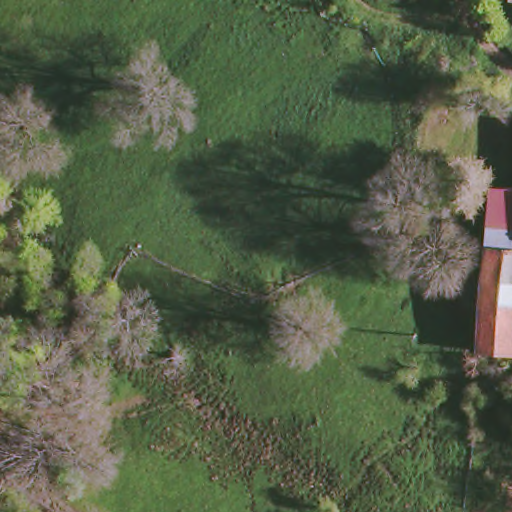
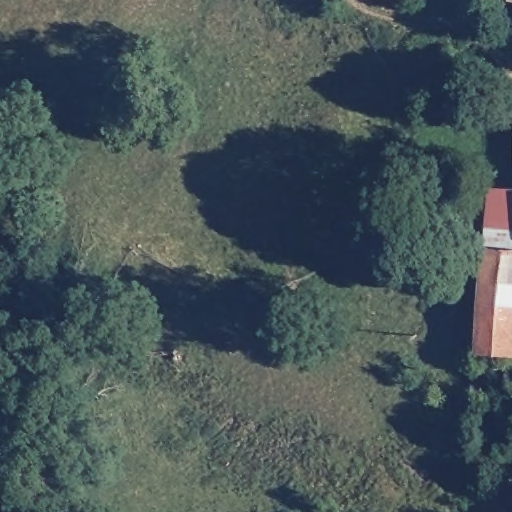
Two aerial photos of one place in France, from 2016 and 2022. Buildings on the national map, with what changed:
unchanged [(472,351),(480,266),(489,188),(512,187),(512,356),(472,351)]

